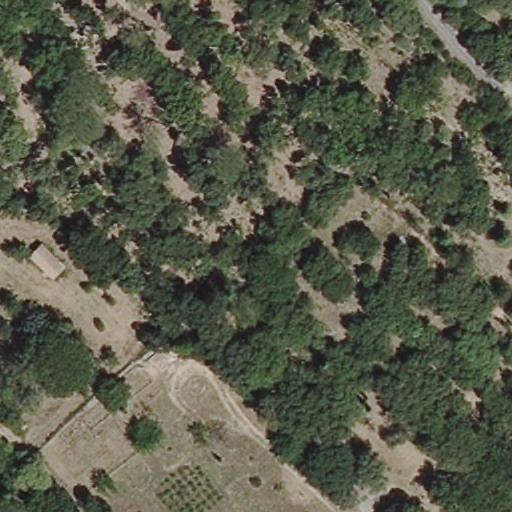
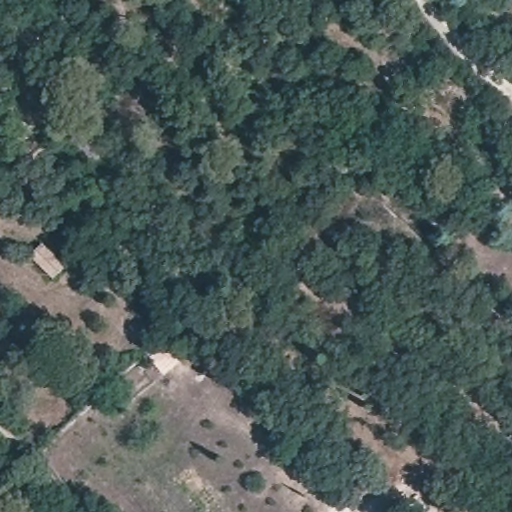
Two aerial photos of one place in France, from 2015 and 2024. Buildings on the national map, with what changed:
unchanged [(65,266),(54,278),(30,256),(41,244),(65,266)]
unchanged [(393,512),(386,512),(390,508),(393,512)]

